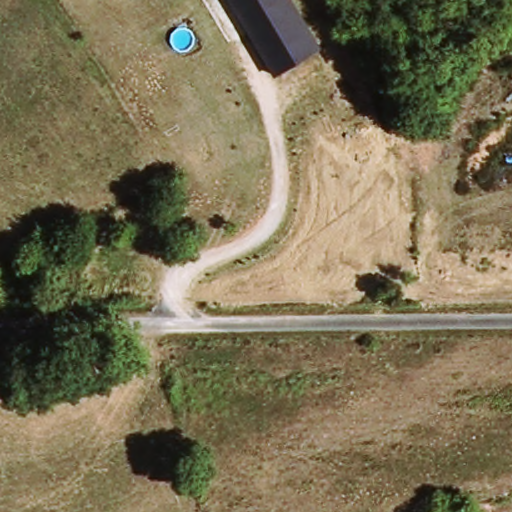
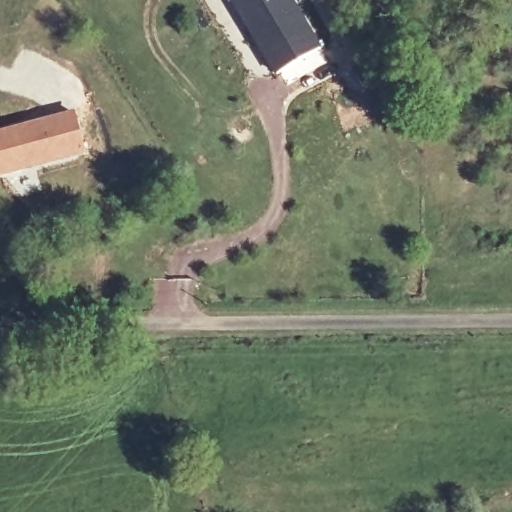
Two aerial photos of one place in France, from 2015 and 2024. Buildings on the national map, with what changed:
unchanged [(293,0),(319,46),(275,70),(235,0),(293,0)]
new [(88,153),(0,177),(0,130),(74,109),(88,153)]

